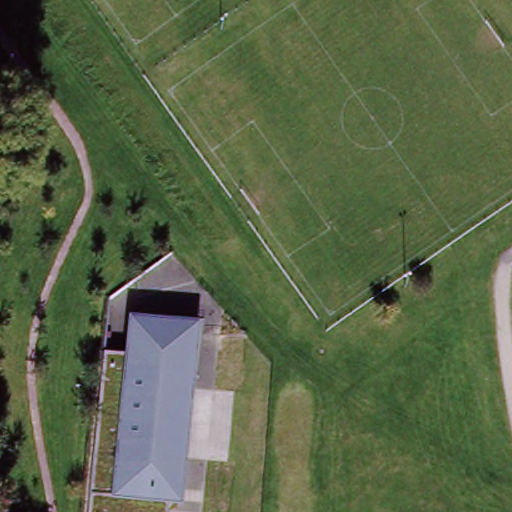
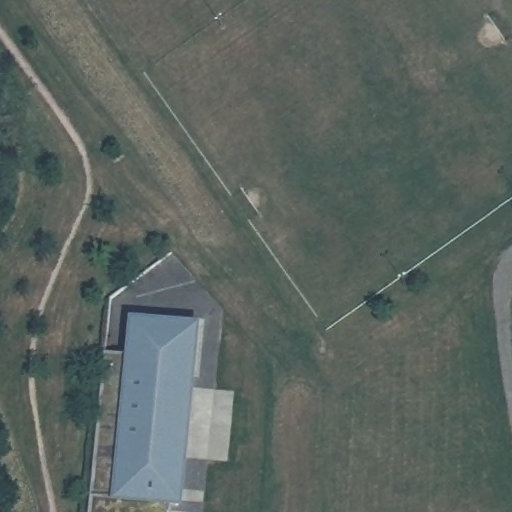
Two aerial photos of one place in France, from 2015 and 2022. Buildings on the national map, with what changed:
unchanged [(191,328),(178,489),(169,488),(167,512),(86,512),(100,354),(125,356),(128,322),(191,328)]

